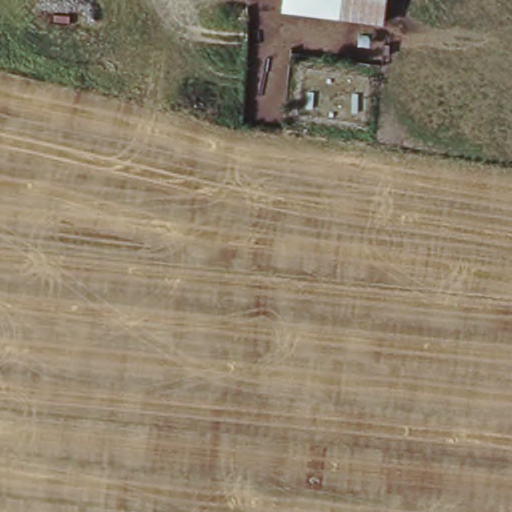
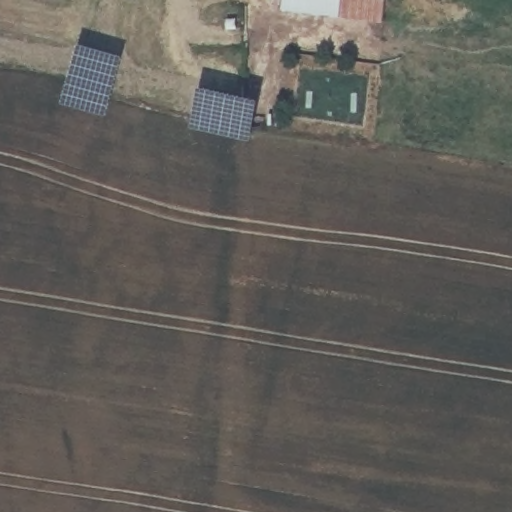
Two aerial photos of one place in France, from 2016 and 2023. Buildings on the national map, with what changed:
unchanged [(281,0),(385,0),(382,19),(280,7),(281,0)]
new [(124,59),(106,119),(64,105),(80,47),(124,59)]
new [(258,102),(252,142),(191,130),(200,90),(258,102)]

